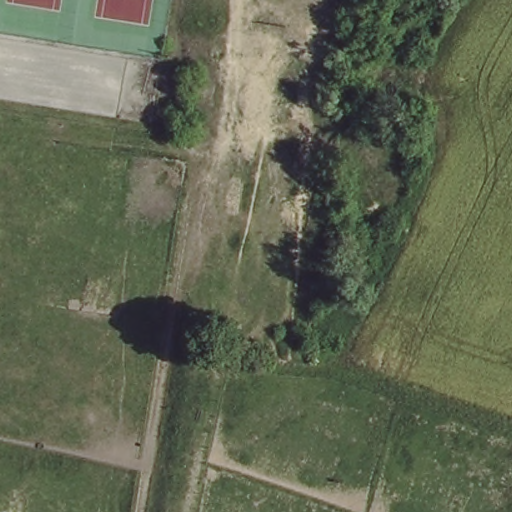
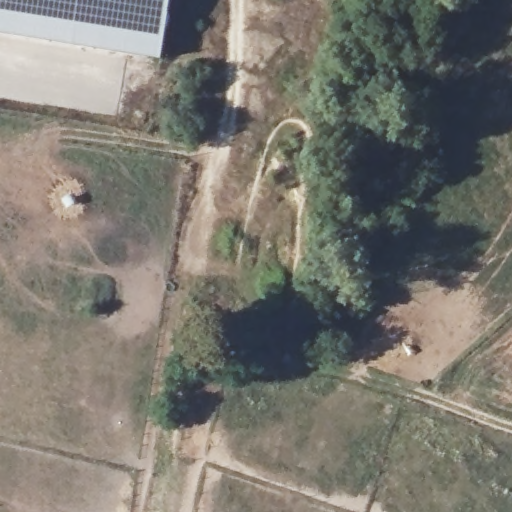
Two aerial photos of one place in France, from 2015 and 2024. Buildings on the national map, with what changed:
new [(0,39),(0,0),(167,0),(157,64),(0,39)]

